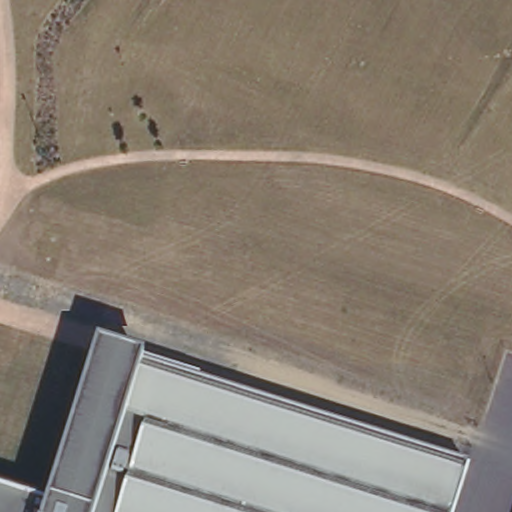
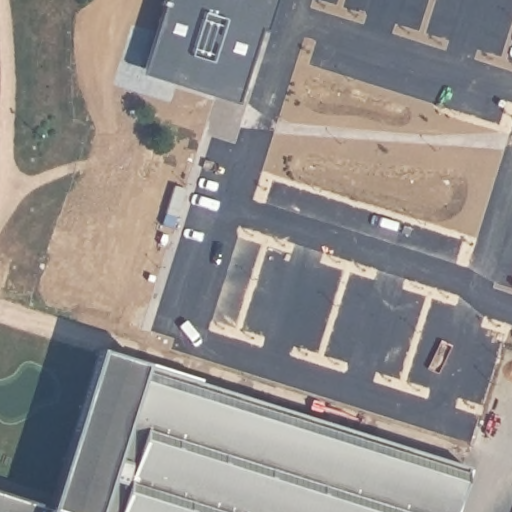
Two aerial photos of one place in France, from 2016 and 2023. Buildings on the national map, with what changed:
new [(267,34),(259,31),(238,103),(148,77),(170,7),(161,3),(162,0),(277,0),(267,34)]
unchanged [(466,466),(451,512),(45,512),(101,337),(466,466)]
unchanged [(0,512),(0,508),(10,512),(0,512)]

